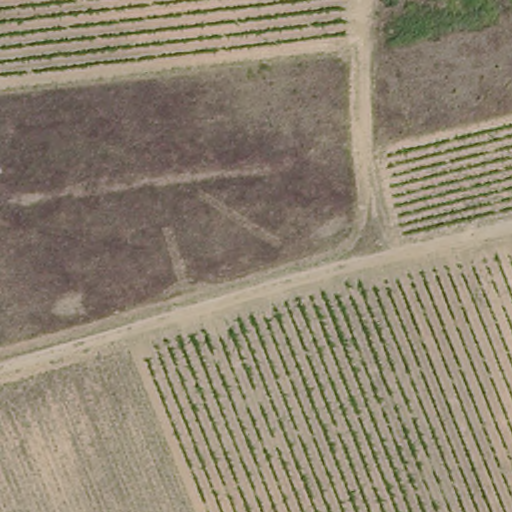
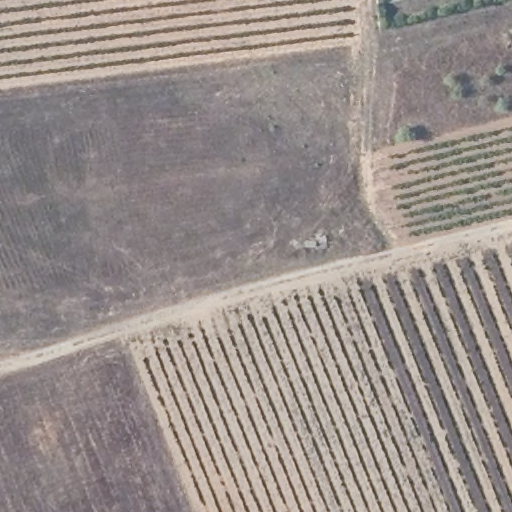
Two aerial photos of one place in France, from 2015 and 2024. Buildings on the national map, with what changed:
[]

